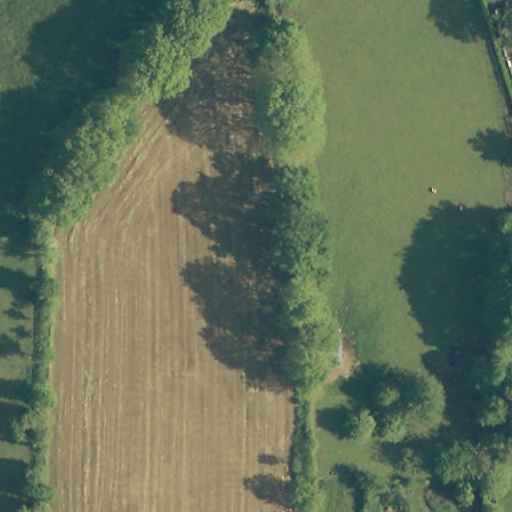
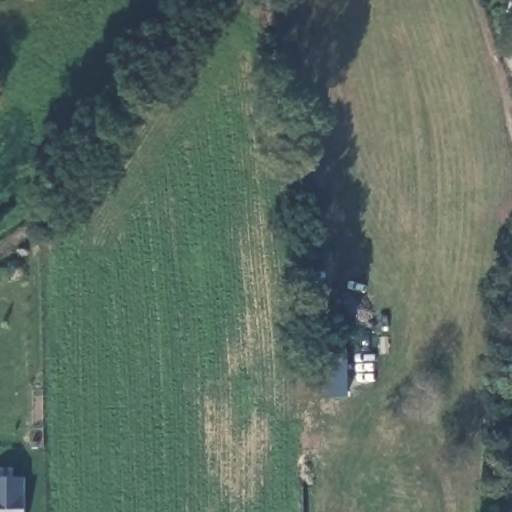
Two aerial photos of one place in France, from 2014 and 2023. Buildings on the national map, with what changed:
new [(21,478),(21,512),(0,512),(0,478),(21,478)]

